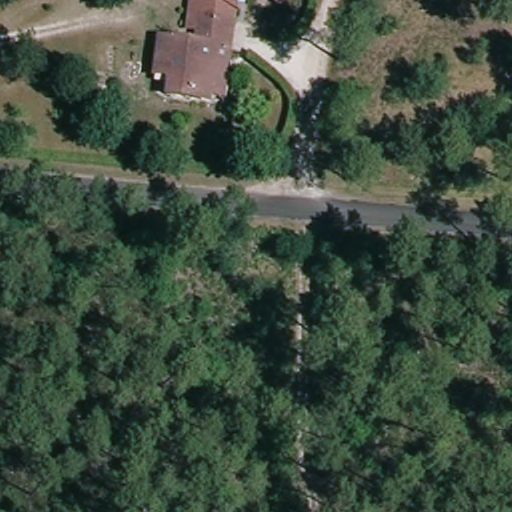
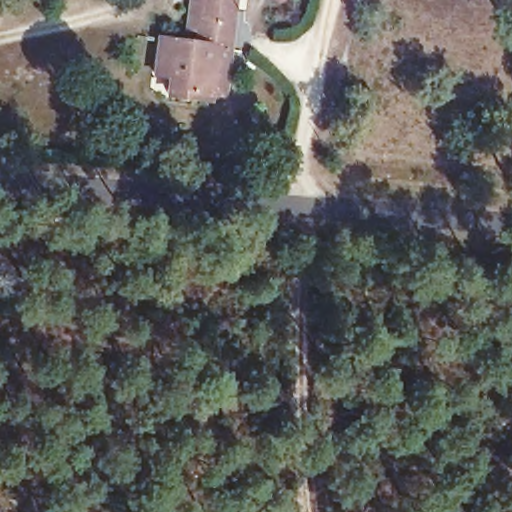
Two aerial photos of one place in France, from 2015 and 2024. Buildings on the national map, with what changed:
unchanged [(228,105),(166,97),(169,77),(152,76),(156,34),(183,36),(187,0),(241,0),(228,105)]

